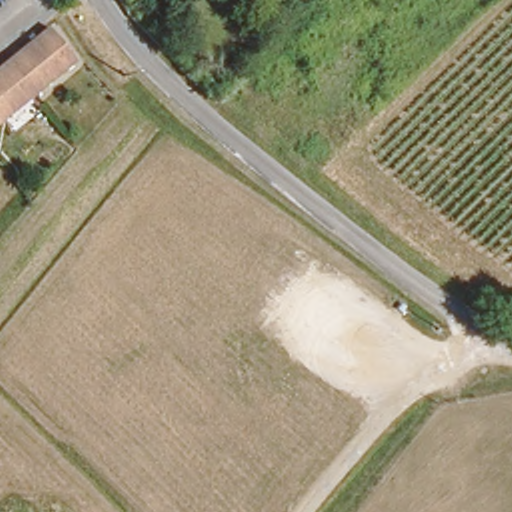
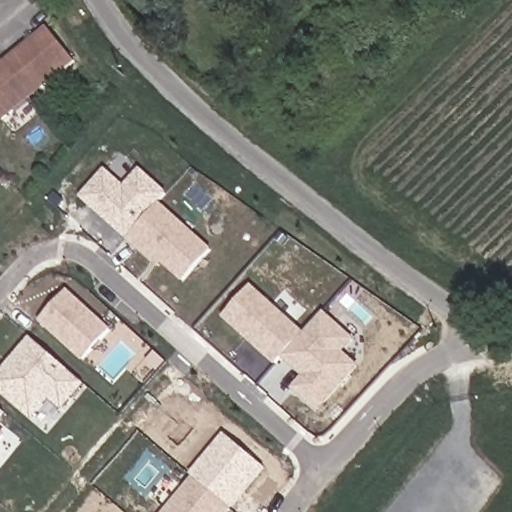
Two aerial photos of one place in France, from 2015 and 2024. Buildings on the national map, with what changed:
unchanged [(73,54),(43,80),(31,90),(16,101),(0,115),(0,60),(46,21),(73,54)]
new [(164,265),(159,270),(79,198),(106,169),(124,185),(139,166),(167,193),(159,202),(213,252),(183,282),(164,265)]
new [(282,359),(275,366),(223,319),(252,286),(305,333),(323,312),(354,340),(345,352),(360,366),(318,414),(292,390),(302,377),(282,359)]
new [(111,330),(83,361),(40,322),(68,291),(111,330)]
new [(0,373),(31,338),(85,385),(62,411),(50,400),(31,421),(0,391),(0,373)]
new [(0,421),(0,410),(6,414),(0,421)]
new [(0,443),(0,430),(6,435),(0,443)]
new [(230,512),(163,512),(225,435),(265,468),(230,512)]

